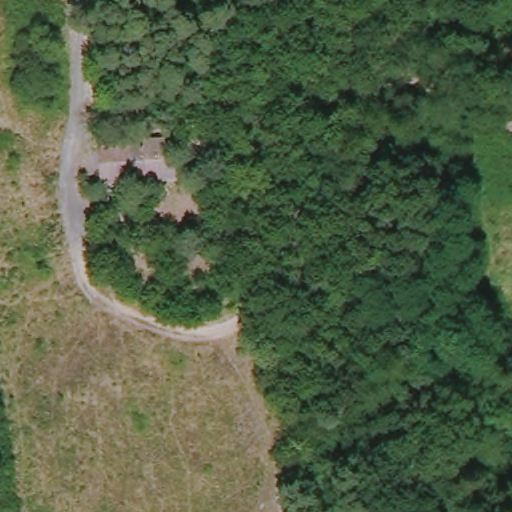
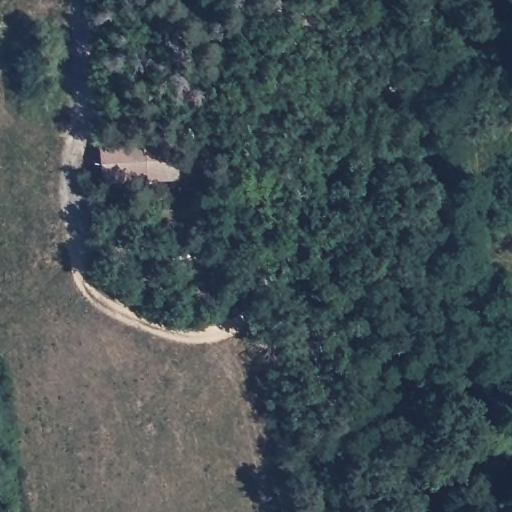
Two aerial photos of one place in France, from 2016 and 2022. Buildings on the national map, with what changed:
unchanged [(101,183),(100,140),(151,139),(152,181),(101,183)]

